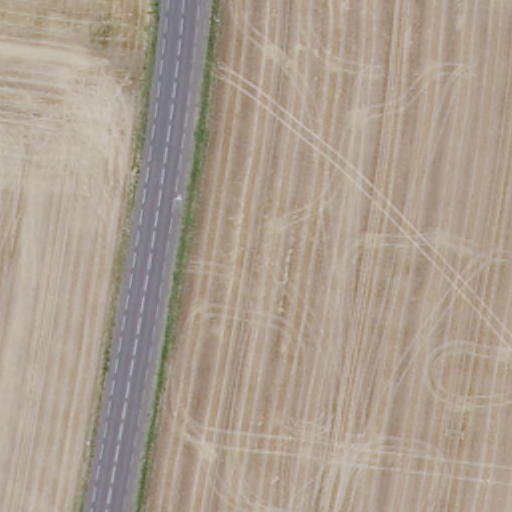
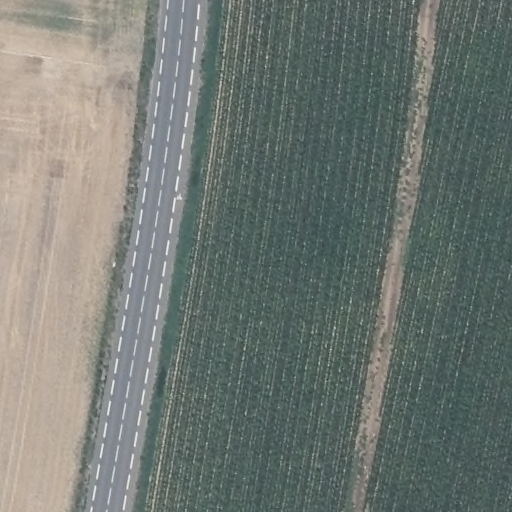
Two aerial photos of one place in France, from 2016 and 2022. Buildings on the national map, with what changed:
[]

